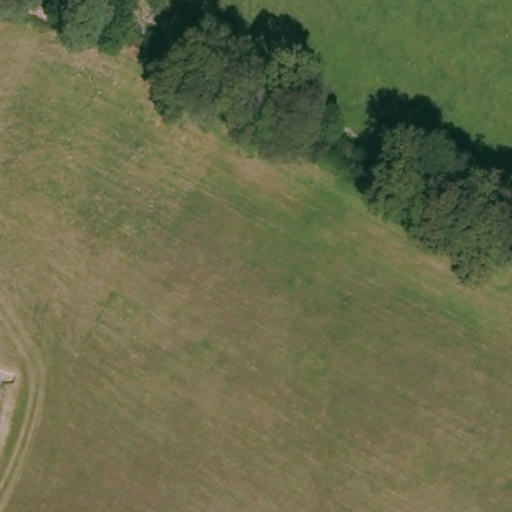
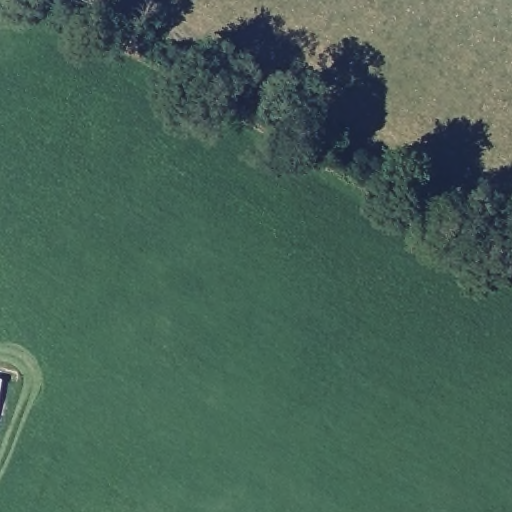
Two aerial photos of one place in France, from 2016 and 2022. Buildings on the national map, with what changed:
unchanged [(1,420),(0,420),(0,411),(3,411),(1,420)]

